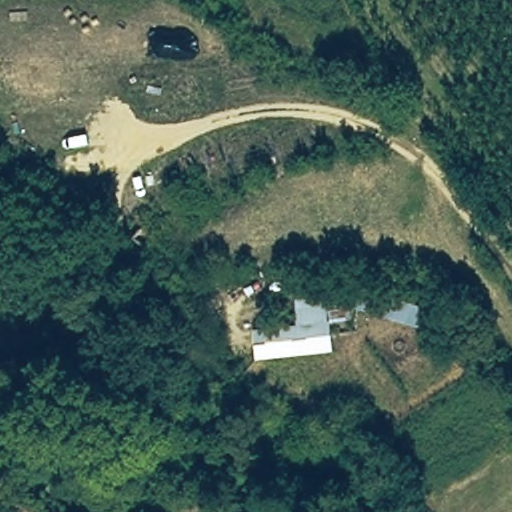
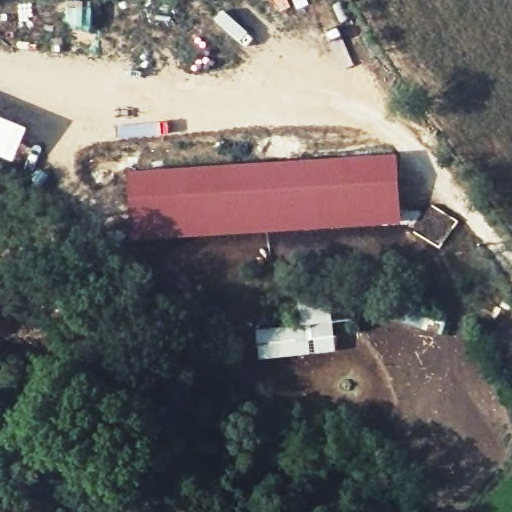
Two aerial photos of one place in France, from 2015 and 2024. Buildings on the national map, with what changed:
new [(128,171),(398,154),(402,224),(131,241),(128,171)]
unchanged [(338,354),(261,361),(256,329),(301,324),(298,293),(332,290),(338,354)]
unchanged [(364,290),(439,311),(433,332),(358,310),(364,290)]

